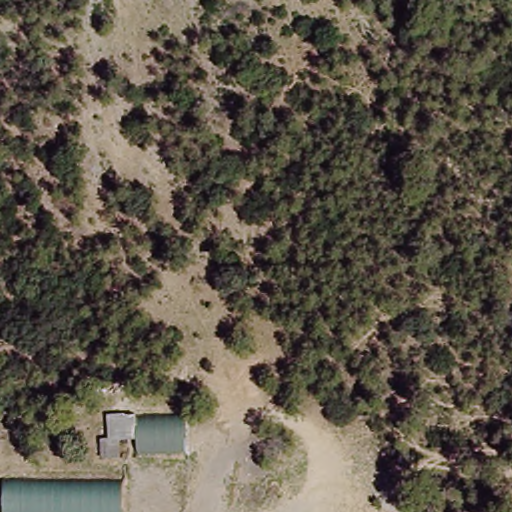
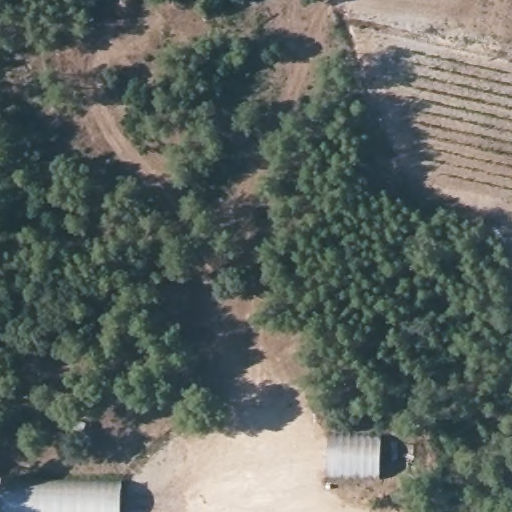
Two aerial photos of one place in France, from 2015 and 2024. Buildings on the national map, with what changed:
new [(379,434),(379,478),(328,478),(328,434),(379,434)]
unchanged [(1,481),(124,483),(124,512),(1,512),(1,481)]

